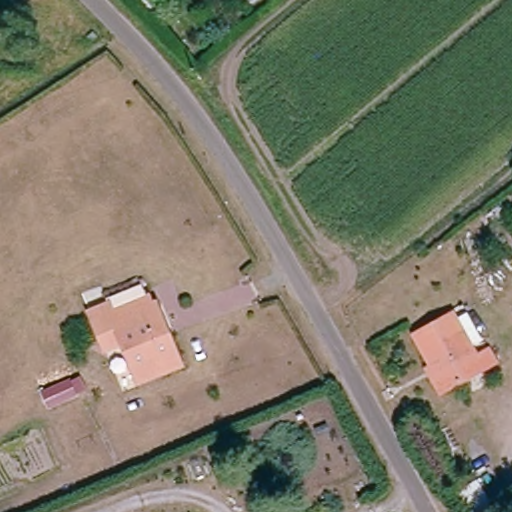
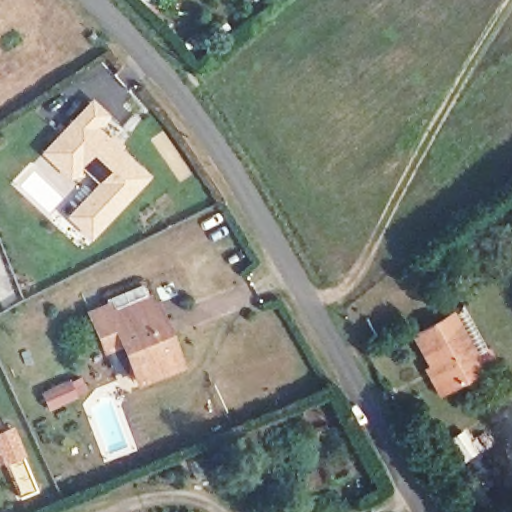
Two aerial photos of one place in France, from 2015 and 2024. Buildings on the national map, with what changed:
new [(104,115),(93,126),(146,175),(91,235),(70,216),(102,183),(80,164),(68,176),(43,152),(90,103),(104,115)]
unchanged [(159,315),(179,374),(135,389),(120,350),(104,355),(91,320),(108,312),(105,303),(140,292),(146,309),(150,318),(159,315)]
unchanged [(423,378),(430,374),(409,338),(449,316),(475,362),(488,353),(498,369),(484,377),(446,400),(439,404),(423,378)]

